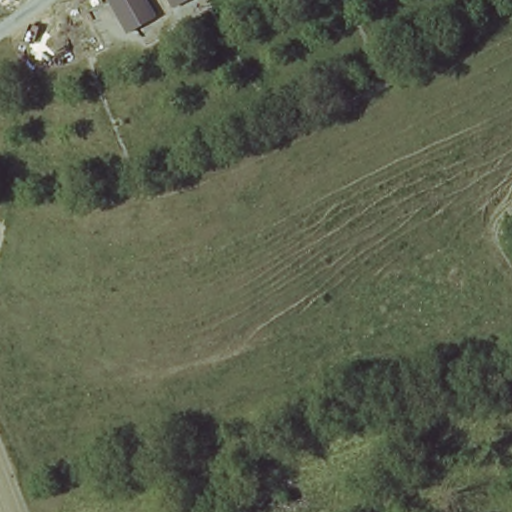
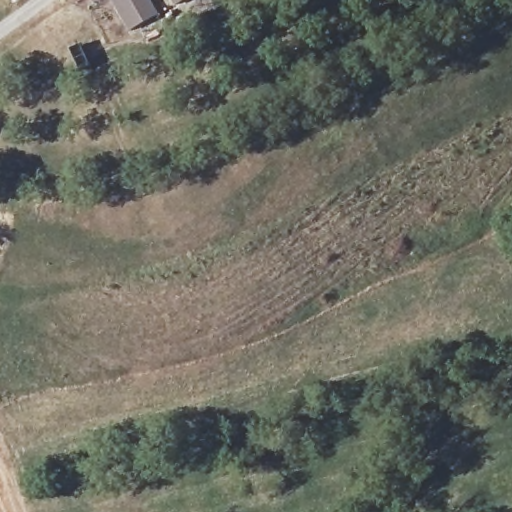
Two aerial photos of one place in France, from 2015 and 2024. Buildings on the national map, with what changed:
unchanged [(127,31),(110,0),(145,0),(154,15),(127,31)]
unchanged [(170,0),(177,0),(172,3),(170,0)]

